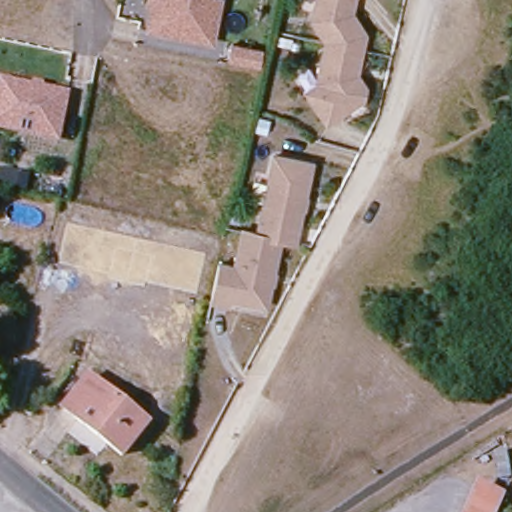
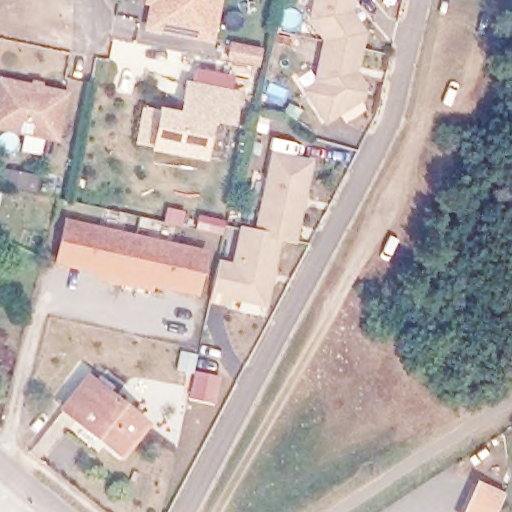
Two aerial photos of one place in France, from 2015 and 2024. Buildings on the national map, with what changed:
unchanged [(186,43),(149,35),(154,11),(148,10),(149,0),(205,0),(205,3),(212,4),(219,5),(211,48),(186,43)]
unchanged [(314,0),(347,0),(345,9),(362,34),(359,50),(324,43),(310,22),(314,0)]
unchanged [(361,100),(326,124),(306,94),(319,85),(317,83),(324,43),(359,50),(357,65),(355,74),(362,88),(361,100)]
unchanged [(226,65),(230,48),(259,54),(257,64),(256,71),(226,65)]
unchanged [(0,127),(0,81),(61,94),(56,120),(51,138),(40,135),(0,127)]
new [(213,122),(205,159),(151,150),(160,108),(181,112),(186,84),(242,95),(235,125),(213,122)]
unchanged [(275,156),(312,163),(296,243),(281,239),(260,235),(275,156)]
new [(56,265),(66,220),(209,253),(199,299),(56,265)]
demolished [(182,283),(149,275),(159,224),(196,229),(182,283)]
unchanged [(281,239),(268,300),(232,294),(231,299),(230,305),(212,302),(220,264),(236,269),(243,232),(260,235),(281,239)]
unchanged [(150,420),(115,461),(61,413),(96,374),(150,420)]
unchanged [(477,487),(502,499),(496,512),(467,512),(477,487)]

